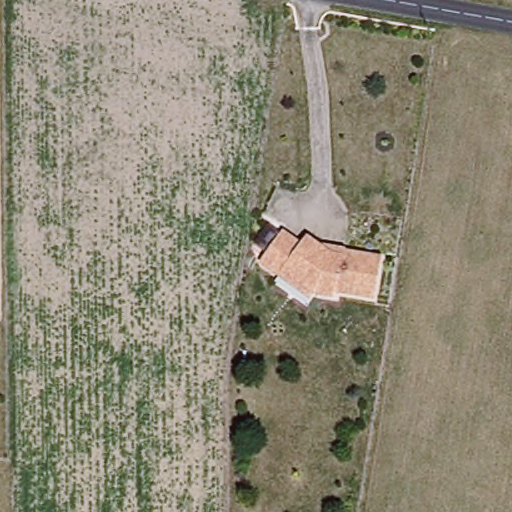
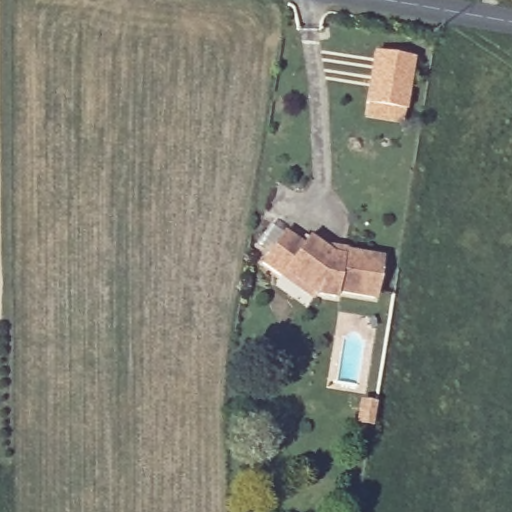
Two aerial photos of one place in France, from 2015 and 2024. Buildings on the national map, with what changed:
new [(371,49),(414,56),(405,109),(402,124),(361,118),(363,102),(371,49)]
unchanged [(282,275),(265,262),(289,232),(305,244),(311,238),(327,251),(345,254),(382,262),(375,302),(338,294),(338,298),(317,296),(313,300),(282,275)]

